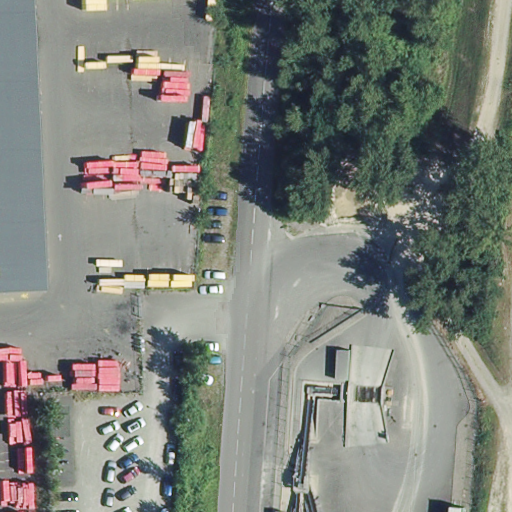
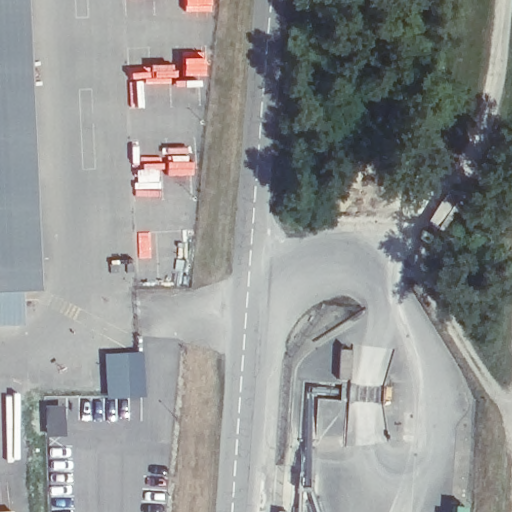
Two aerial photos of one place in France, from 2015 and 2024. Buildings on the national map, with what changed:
unchanged [(36,290),(0,291),(0,0),(27,0),(36,290)]
new [(143,351),(145,396),(105,398),(103,353),(143,351)]
new [(65,404),(66,435),(45,436),(43,405),(65,404)]

